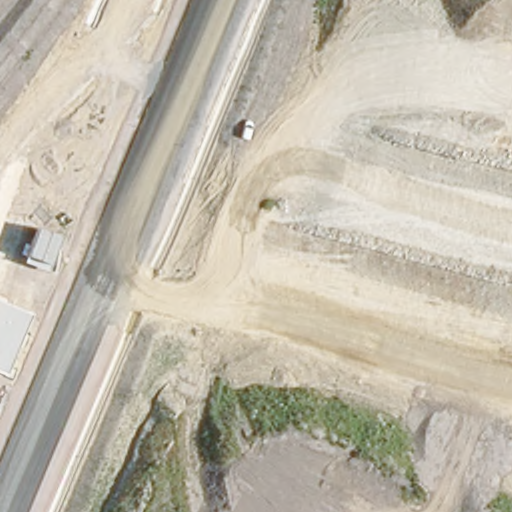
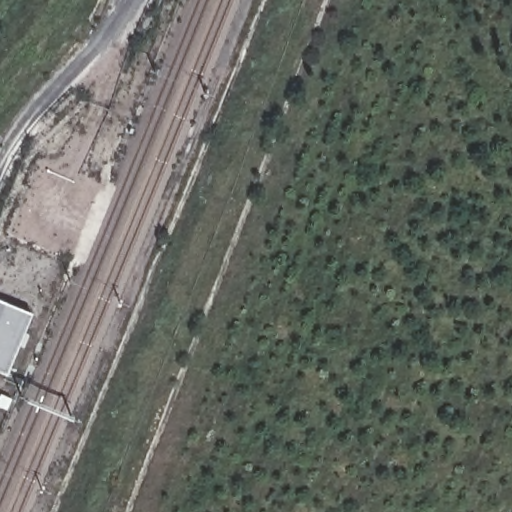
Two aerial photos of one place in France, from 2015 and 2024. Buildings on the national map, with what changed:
unchanged [(6,378),(0,375),(0,302),(31,315),(6,378)]

